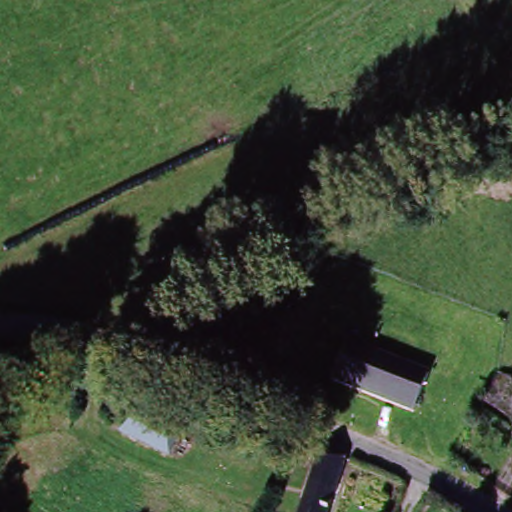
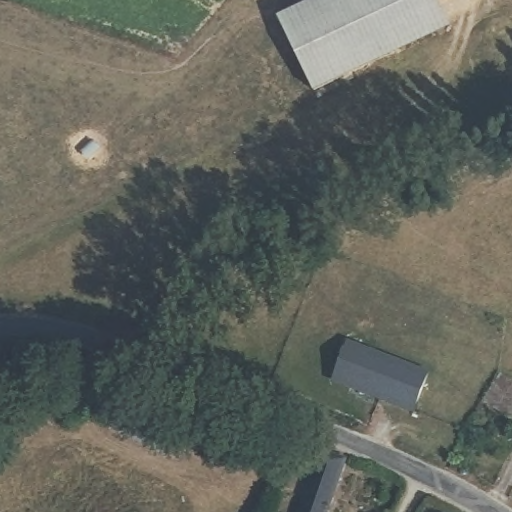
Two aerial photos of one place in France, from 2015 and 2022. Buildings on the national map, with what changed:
new [(312,0),(439,0),(452,27),(313,91),(277,16),(312,0)]
unchanged [(349,345),(428,377),(412,411),(334,385),(349,345)]
unchanged [(505,403),(512,408),(512,442),(490,428),(505,403)]
unchanged [(172,417),(166,433),(180,439),(170,460),(111,433),(122,410),(147,421),(152,409),(172,417)]
unchanged [(324,512),(296,512),(315,458),(340,468),(324,512)]

